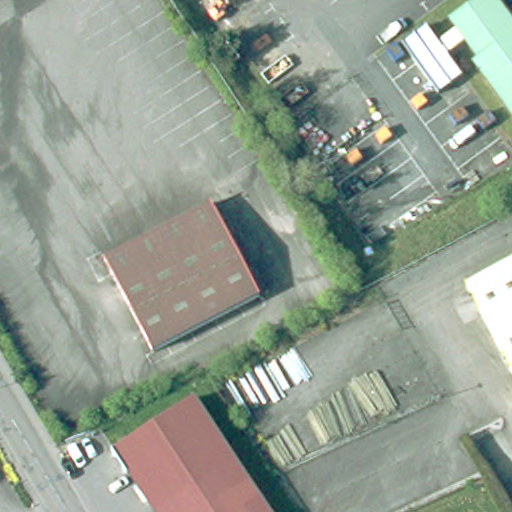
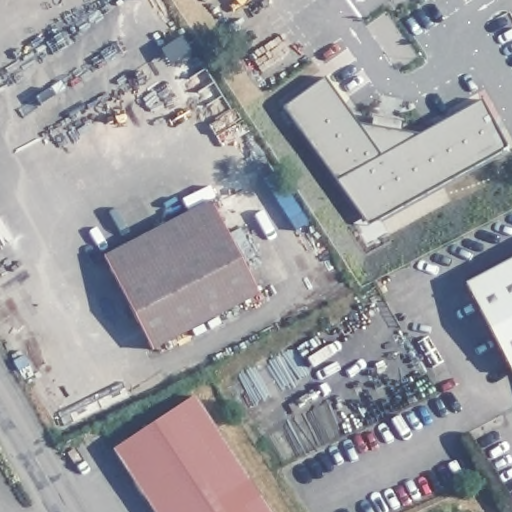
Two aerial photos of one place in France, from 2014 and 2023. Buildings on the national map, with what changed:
demolished [(471,55),(476,51),(449,11),(465,0),(500,0),(512,18),(512,119),(471,55)]
new [(506,149),(368,225),(284,107),(324,78),(356,125),(369,126),(371,117),(402,122),(401,130),(419,135),(481,100),(506,149)]
unchanged [(101,254),(209,200),(257,294),(151,349),(101,254)]
unchanged [(512,375),(464,286),(512,259),(512,375)]
unchanged [(186,399),(263,512),(153,512),(111,450),(186,399)]

